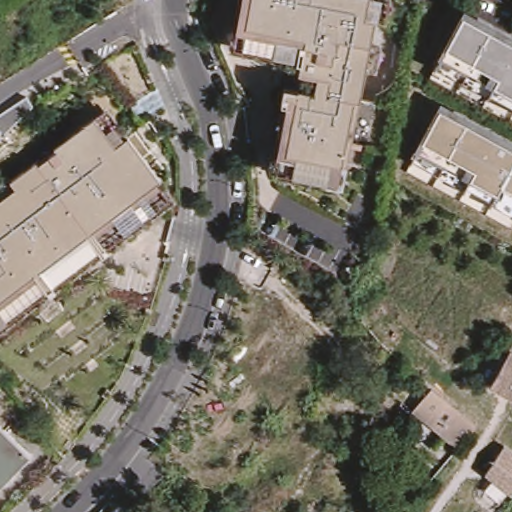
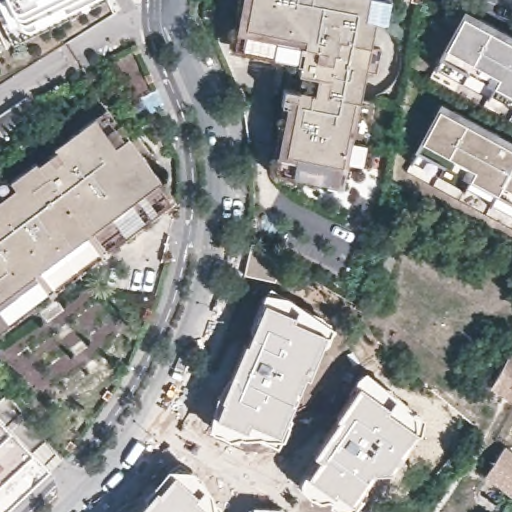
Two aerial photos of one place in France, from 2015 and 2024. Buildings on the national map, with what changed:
new [(25,30),(22,28),(13,8),(9,0),(91,0),(30,31),(25,30)]
unchanged [(371,21),(366,49),(378,49),(375,69),(361,68),(340,186),(277,174),(280,110),(276,107),(280,89),(294,90),(295,66),(234,53),(240,0),(382,0),(384,21),(371,21)]
unchanged [(443,49),(463,8),(512,34),(512,111),(434,67),(443,49)]
unchanged [(0,130),(0,115),(26,96),(34,106),(3,134),(0,130)]
unchanged [(419,144),(438,106),(512,146),(512,219),(411,164),(419,144)]
unchanged [(0,333),(0,185),(104,110),(178,196),(0,333)]
new [(250,246),(282,257),(276,282),(243,275),(250,246)]
demolished [(390,278),(375,272),(383,251),(388,253),(397,258),(390,278)]
new [(270,286),(288,296),(333,327),(330,335),(326,334),(309,377),(306,376),(285,421),(289,423),(283,438),(280,438),(276,446),(259,436),(230,438),(208,429),(216,396),(227,377),(233,372),(245,342),(247,343),(264,305),(261,304),(265,293),(270,286)]
unchanged [(512,350),(512,397),(490,385),(510,349),(512,350)]
new [(396,395),(406,408),(411,413),(423,418),(419,432),(391,471),(374,473),(358,495),(361,498),(352,511),(338,508),(333,501),(328,499),(323,499),(319,499),(307,494),(302,489),(300,484),(301,479),(316,457),(313,454),(338,419),(336,417),(356,387),(355,383),(357,377),(366,370),(396,395)]
demolished [(464,418),(475,429),(456,451),(413,415),(427,398),(432,391),(464,418)]
new [(5,512),(0,512),(0,421),(50,472),(5,512)]
demolished [(0,481),(0,423),(29,453),(0,481)]
unchanged [(512,457),(512,497),(511,500),(485,480),(505,451),(512,457)]
new [(190,469),(211,492),(212,501),(219,503),(221,509),(220,512),(135,512),(153,492),(151,490),(169,469),(190,469)]
new [(253,508),(253,507),(283,508),(283,512),(247,512),(248,508),(253,508)]

